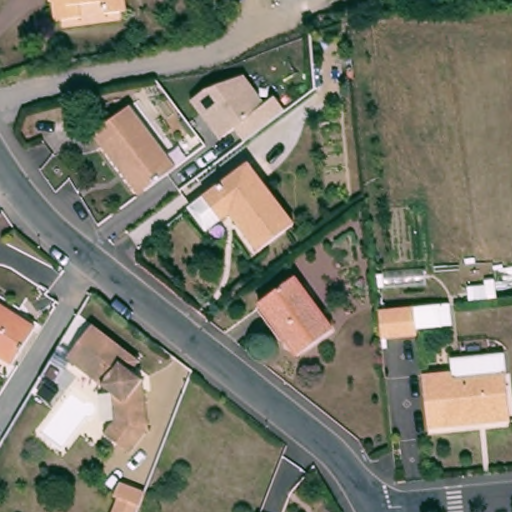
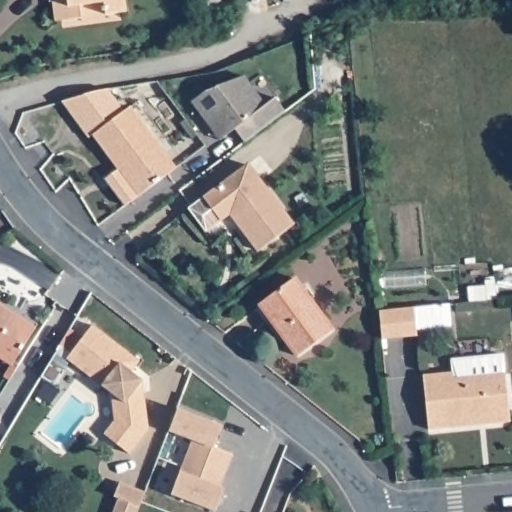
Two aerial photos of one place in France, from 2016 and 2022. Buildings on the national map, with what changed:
unchanged [(132,15),(110,17),(110,6),(86,9),(87,17),(86,20),(61,22),(60,1),(55,2),(55,0),(130,0),(132,15)]
unchanged [(234,126),(216,138),(192,101),(246,75),(265,103),(278,97),(285,110),(244,141),(234,126)]
unchanged [(110,151),(99,136),(138,110),(181,172),(151,193),(144,198),(110,151)]
unchanged [(250,166),(295,227),(262,250),(235,212),(222,222),(205,198),(250,166)]
unchanged [(299,279),(337,332),(301,357),(263,303),(299,279)]
unchanged [(16,362),(0,353),(0,303),(39,327),(16,362)]
unchanged [(423,308),(441,306),(443,326),(418,328),(419,335),(384,339),(381,312),(417,309),(423,308)]
unchanged [(141,356),(145,360),(143,361),(136,370),(147,379),(142,385),(149,391),(152,428),(132,452),(107,431),(119,418),(116,391),(72,355),(100,322),(141,356)]
unchanged [(432,430),(427,376),(455,373),(455,380),(509,374),(512,410),(512,423),(488,425),(456,427),(432,430)]
new [(179,407),(223,425),(215,446),(233,453),(220,486),(225,488),(215,510),(171,492),(193,439),(170,430),(179,407)]
unchanged [(112,500),(119,482),(145,492),(137,512),(113,512),(117,501),(112,500)]

